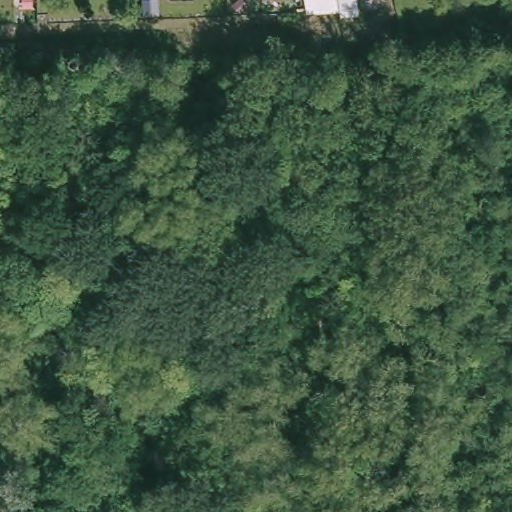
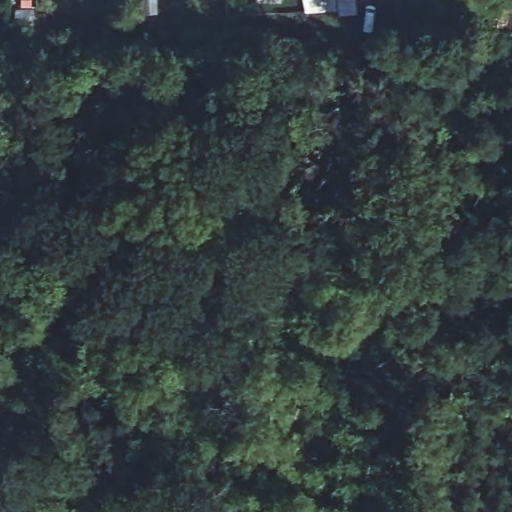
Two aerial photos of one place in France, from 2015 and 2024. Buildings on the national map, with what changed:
unchanged [(350,6),(345,6),(311,8),(310,0),(362,0),(363,4),(350,6)]

